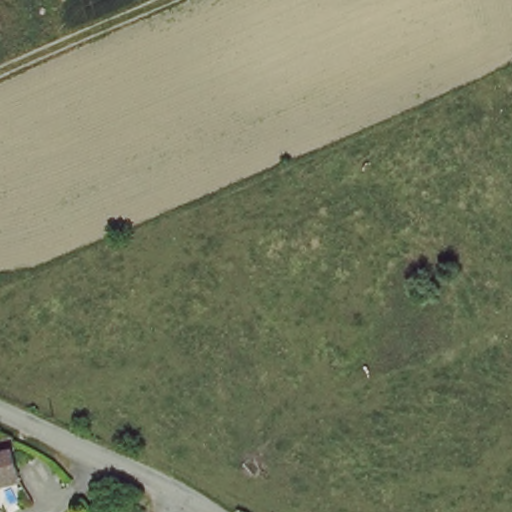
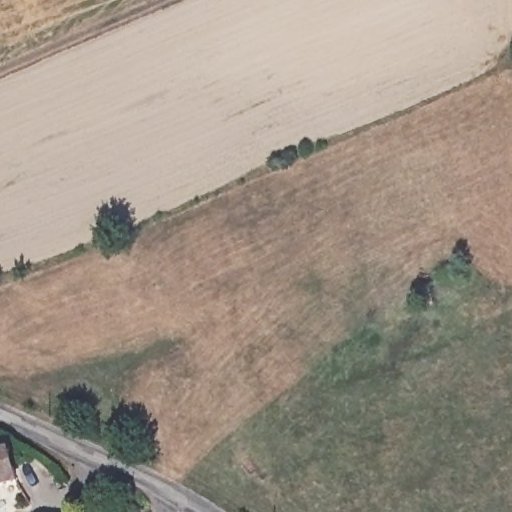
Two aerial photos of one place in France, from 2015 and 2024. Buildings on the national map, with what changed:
unchanged [(5,447),(21,477),(0,489),(0,439),(5,447)]

